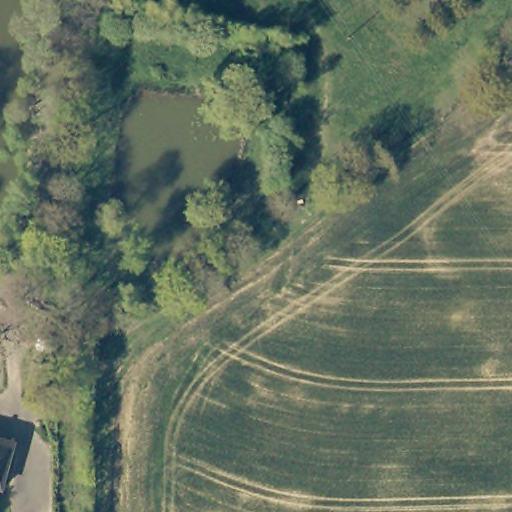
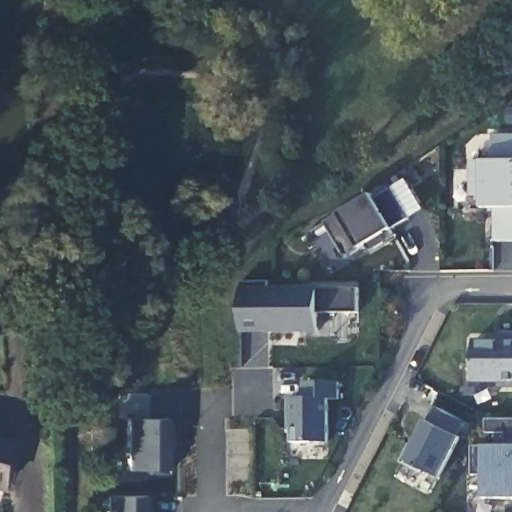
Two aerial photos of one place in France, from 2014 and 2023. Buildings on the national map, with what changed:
new [(495,206),(482,206),(482,161),(493,161),(492,135),(512,135),(512,241),(495,241),(495,206)]
new [(390,230),(360,247),(345,255),(324,221),(339,214),(371,194),(375,200),(408,179),(426,210),(390,230)]
unchanged [(51,271),(65,275),(57,299),(44,296),(50,275),(51,271)]
new [(359,313),(318,312),(318,334),(239,335),(240,283),(268,282),(269,287),(358,290),(359,313)]
unchanged [(120,292),(119,303),(92,303),(92,291),(120,292)]
new [(474,341),(489,341),(490,333),(512,333),(512,382),(472,383),(474,341)]
new [(340,400),(328,400),(328,442),(292,442),(291,397),(303,398),(301,383),(341,383),(340,400)]
new [(459,437),(437,477),(405,461),(425,421),(433,404),(465,422),(459,437)]
new [(126,470),(125,417),(165,417),(166,469),(126,470)]
new [(483,475),(473,475),(473,446),(484,445),(506,445),(506,432),(484,432),(485,419),(512,419),(512,499),(483,499),(483,475)]
unchanged [(15,448),(2,491),(0,490),(0,443),(15,448)]
new [(147,512),(104,512),(104,498),(146,497),(147,512)]

